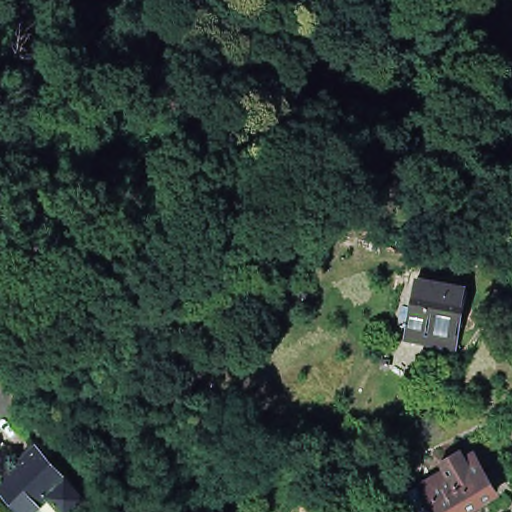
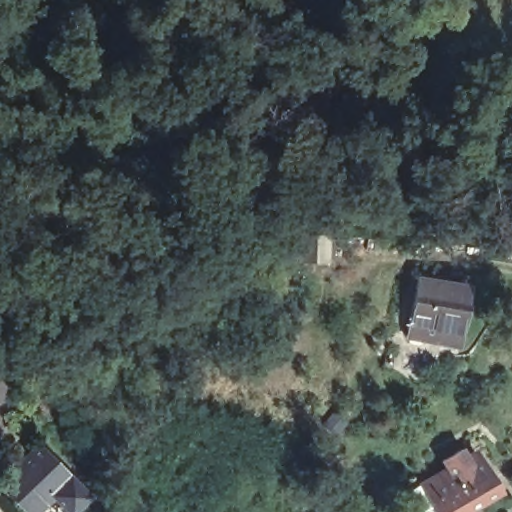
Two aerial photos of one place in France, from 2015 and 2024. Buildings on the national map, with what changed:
unchanged [(415,290),(417,278),(435,283),(467,290),(455,350),(422,343),(404,339),(415,290)]
unchanged [(71,512),(68,512),(52,496),(35,512),(26,512),(0,486),(0,483),(37,446),(87,496),(71,512)]
unchanged [(432,504),(420,512),(406,490),(444,467),(440,460),(459,448),(462,455),(472,450),(497,488),(464,509),(466,512),(438,512),(432,504)]

